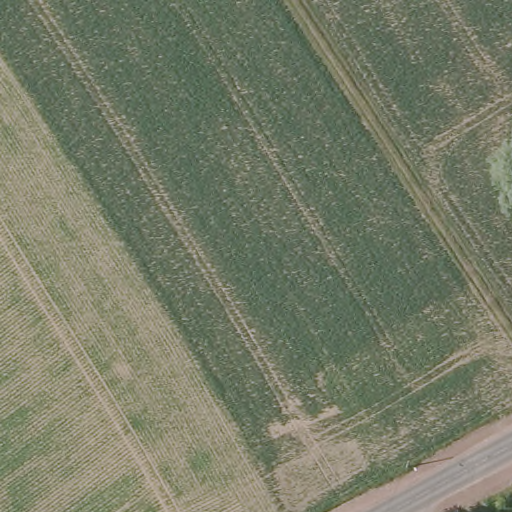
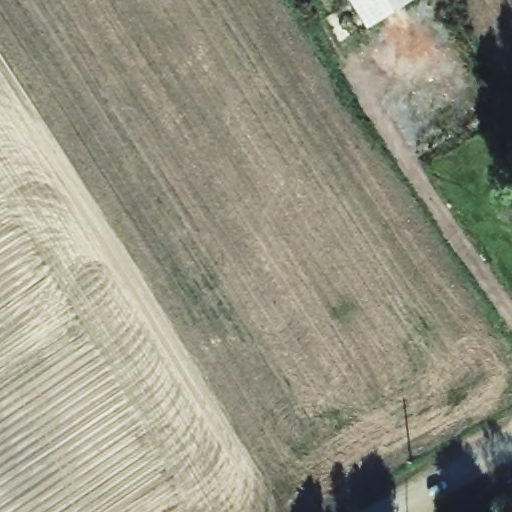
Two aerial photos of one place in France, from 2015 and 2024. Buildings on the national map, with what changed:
new [(409,0),(368,27),(350,0),(409,0)]

